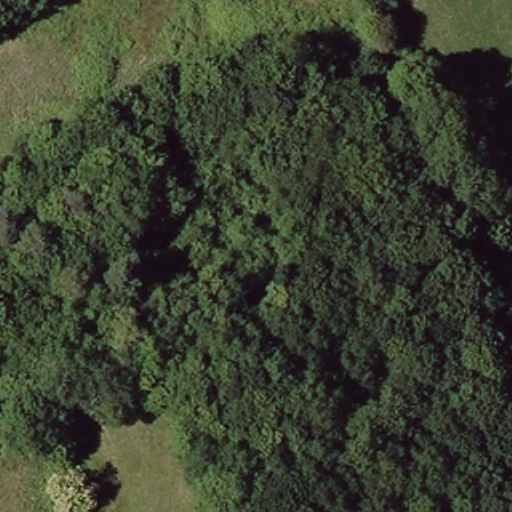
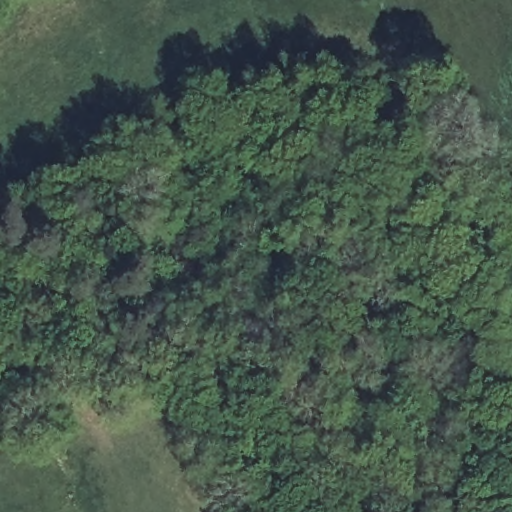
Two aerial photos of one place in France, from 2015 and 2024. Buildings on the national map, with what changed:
[]

